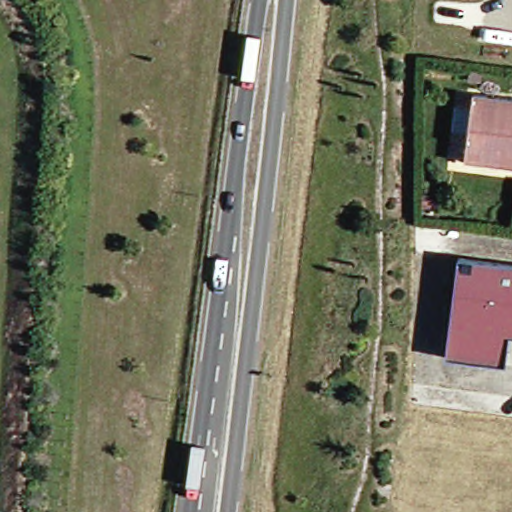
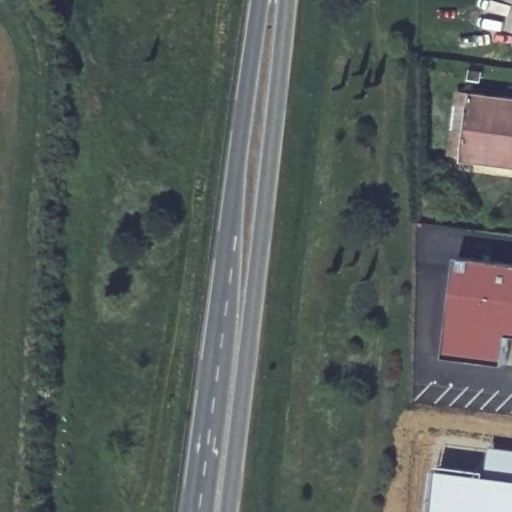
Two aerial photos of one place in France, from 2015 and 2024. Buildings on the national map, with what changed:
unchanged [(512,169),(460,162),(469,93),(512,99),(512,169)]
unchanged [(502,364),(442,357),(454,258),(512,265),(512,336),(506,335),(502,364)]
new [(441,469),(491,476),(494,446),(512,448),(512,512),(436,512),(441,469)]

